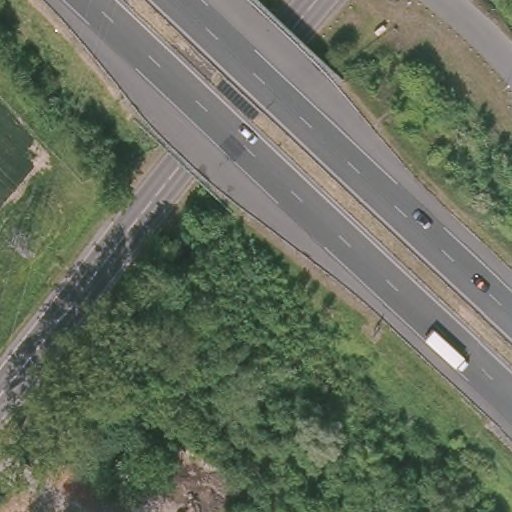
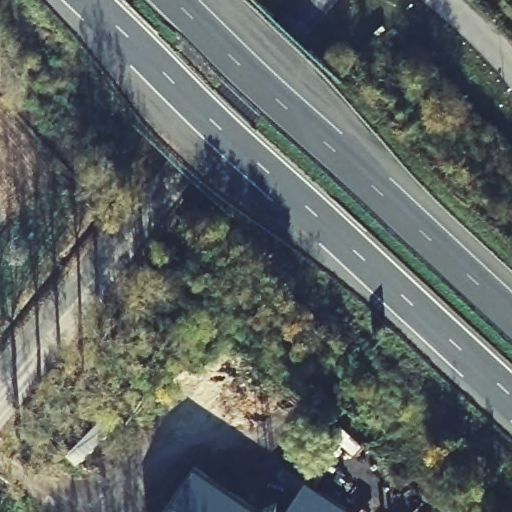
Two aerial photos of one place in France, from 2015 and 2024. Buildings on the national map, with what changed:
new [(323,453),(334,460),(317,485),(349,507),(345,512),(283,512),(323,453)]
new [(194,464),(266,512),(162,512),(194,464)]

